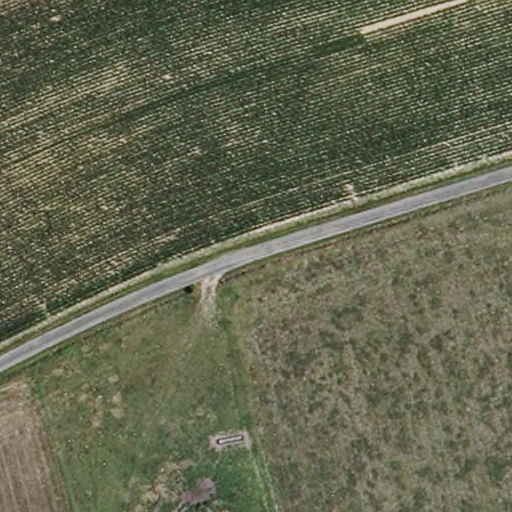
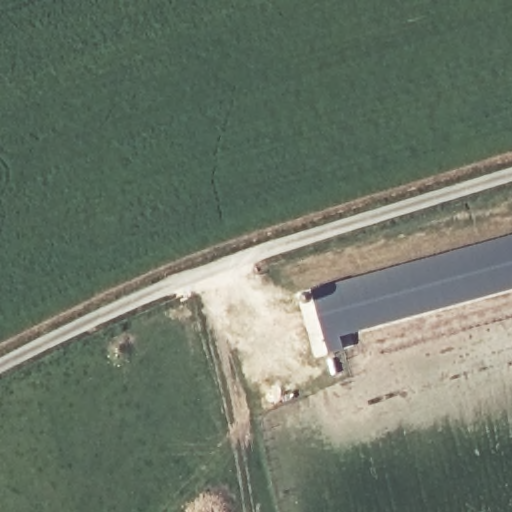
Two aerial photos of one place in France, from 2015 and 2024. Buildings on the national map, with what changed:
new [(341,335),(345,350),(329,355),(311,291),(512,235),(512,288),(341,335)]

